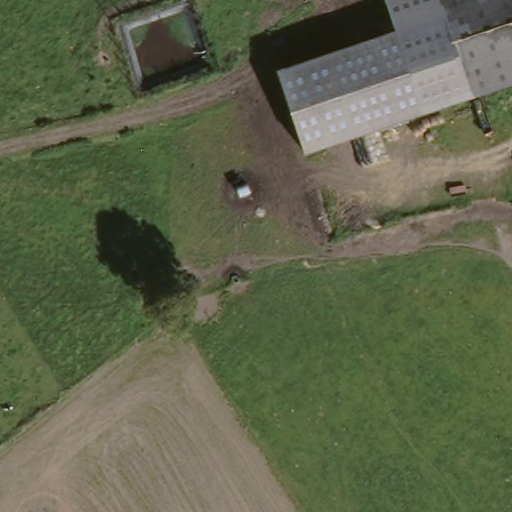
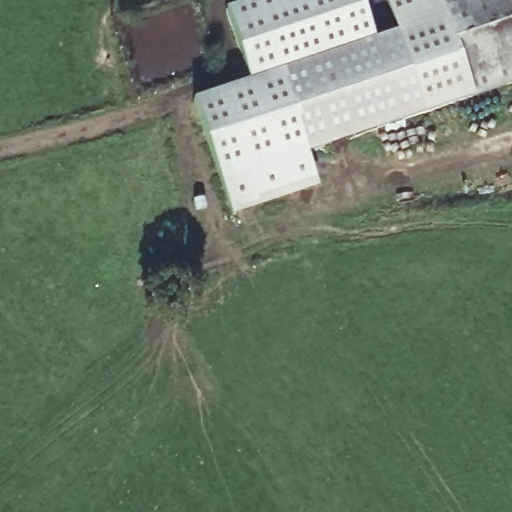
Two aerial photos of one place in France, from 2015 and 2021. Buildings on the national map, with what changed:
new [(308,154),(319,187),(232,217),(194,99),(249,80),(226,10),(256,0),(361,0),(376,41),(280,74),(308,154)]
unchanged [(308,154),(280,74),(398,34),(387,0),(512,0),(512,84),(473,96),(308,154)]

